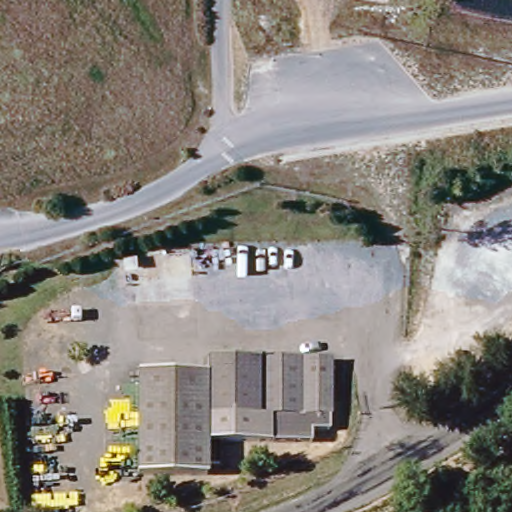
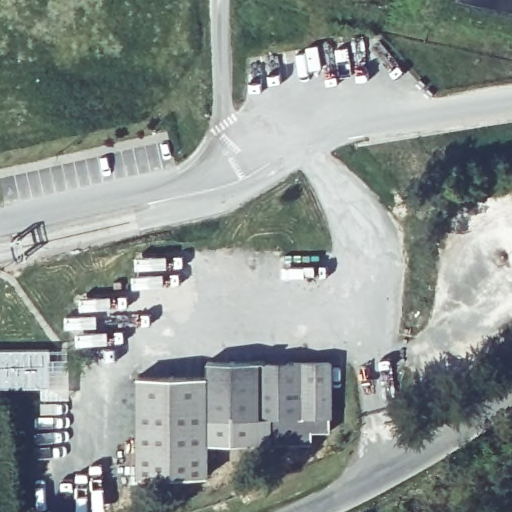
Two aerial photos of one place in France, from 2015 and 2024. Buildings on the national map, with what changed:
new [(56,345),(56,383),(0,385),(0,346),(56,345)]
unchanged [(332,429),(317,429),(317,441),(210,443),(211,478),(140,478),(140,375),(210,375),(210,360),(333,362),(332,429)]

